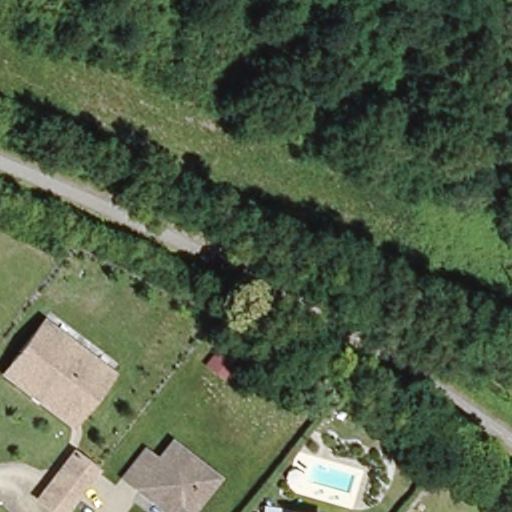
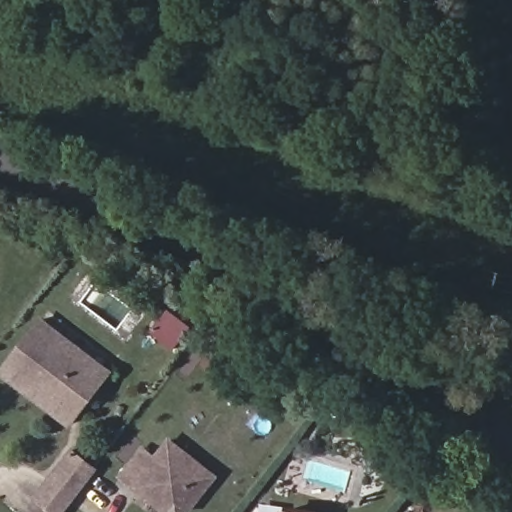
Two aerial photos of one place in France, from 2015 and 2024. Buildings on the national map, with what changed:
unchanged [(46,317),(115,367),(107,378),(38,328),(46,317)]
unchanged [(0,381),(0,379),(6,371),(38,328),(107,378),(71,425),(66,431),(0,381)]
unchanged [(221,362),(205,349),(221,328),(236,342),(221,362)]
unchanged [(166,444),(213,480),(200,497),(195,492),(184,507),(168,509),(134,485),(131,489),(117,479),(138,449),(154,460),(166,444)]
unchanged [(60,512),(50,512),(32,498),(47,478),(51,481),(71,454),(93,471),(60,512)]
unchanged [(284,510),(308,512),(284,512),(284,510)]

